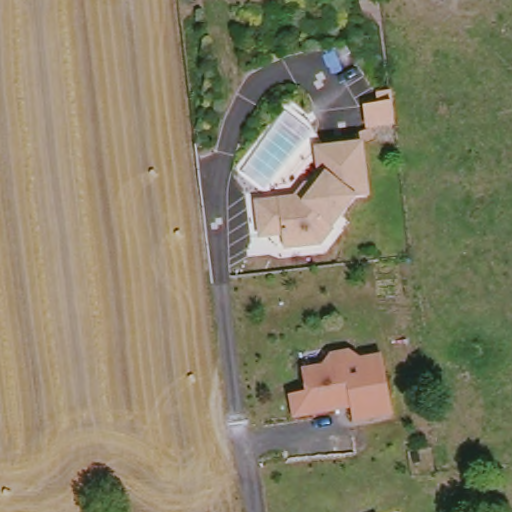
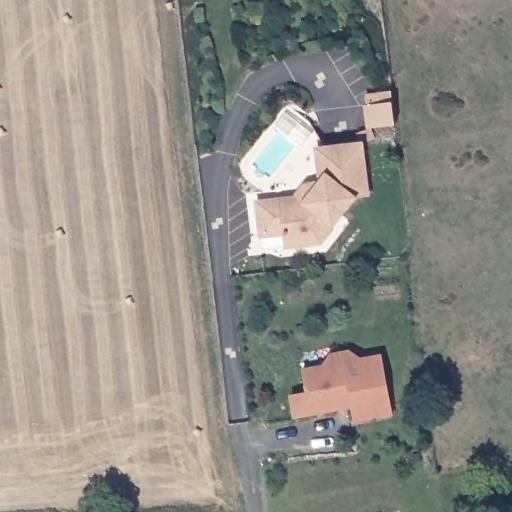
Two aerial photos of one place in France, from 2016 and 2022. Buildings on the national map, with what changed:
unchanged [(369,195),(354,196),(321,244),(286,247),(284,235),(260,235),(256,202),(292,196),(298,184),(318,181),(313,150),(364,144),(369,195)]
unchanged [(305,393),(301,368),(323,365),(330,351),(346,347),(360,360),(382,356),(394,417),(350,423),(348,411),(291,418),(288,397),(305,393)]

